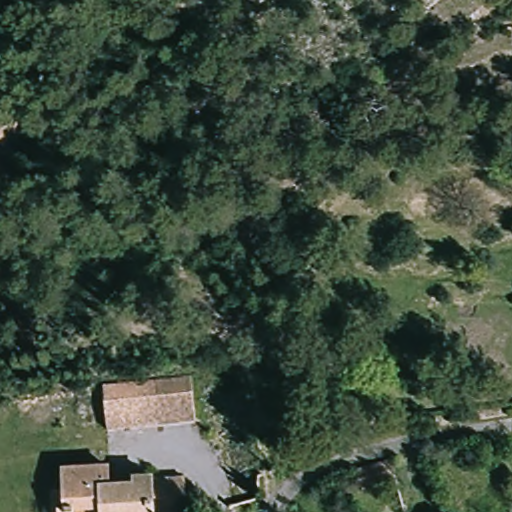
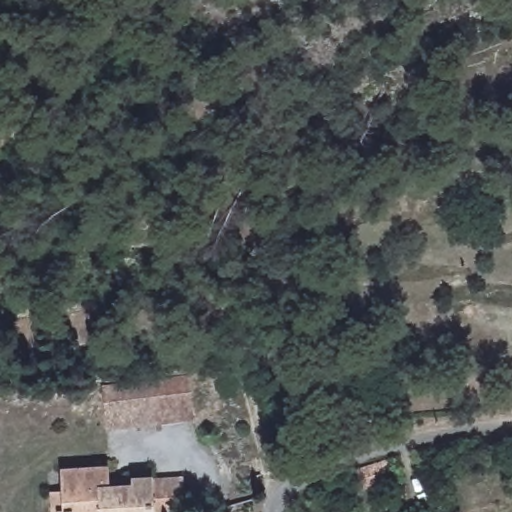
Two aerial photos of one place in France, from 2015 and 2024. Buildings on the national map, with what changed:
unchanged [(74,341),(50,343),(47,315),(71,312),(74,341)]
unchanged [(42,320),(45,342),(23,345),(19,316),(41,314),(42,320)]
unchanged [(186,368),(192,416),(103,427),(97,380),(186,368)]
unchanged [(394,459),(400,480),(366,489),(360,469),(394,459)]
unchanged [(151,511),(151,512),(56,512),(56,511),(50,512),(49,487),(64,486),(63,467),(106,463),(106,472),(132,471),(132,474),(183,471),(185,508),(151,511)]

